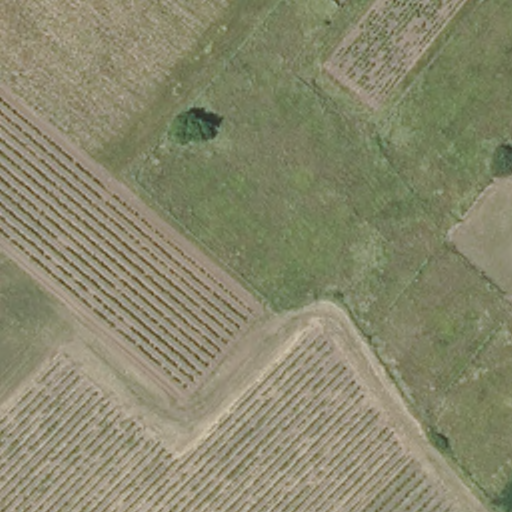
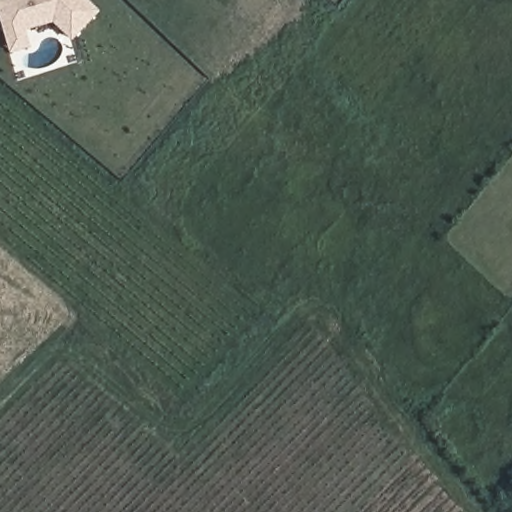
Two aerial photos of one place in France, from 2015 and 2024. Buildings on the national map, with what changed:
new [(25,29),(28,48),(5,54),(0,34),(0,0),(84,0),(97,13),(70,41),(51,23),(25,29)]

